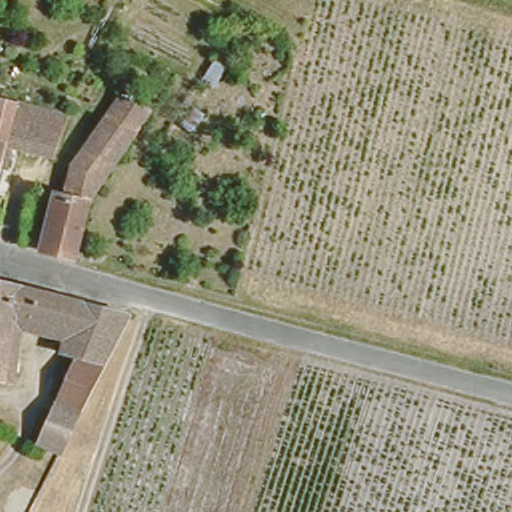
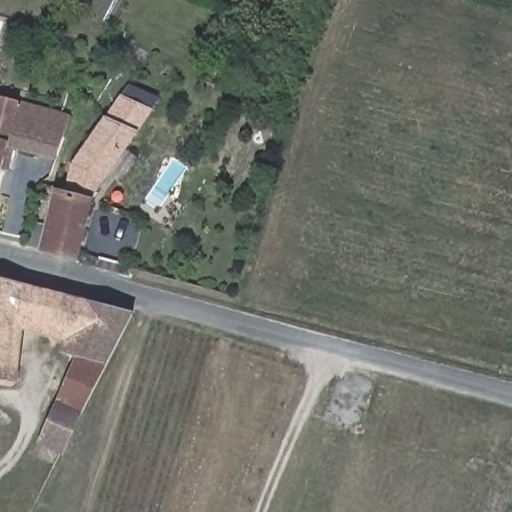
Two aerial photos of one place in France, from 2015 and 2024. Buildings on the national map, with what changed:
unchanged [(117,90),(149,104),(116,155),(84,141),(117,90)]
unchanged [(11,145),(6,167),(0,166),(0,96),(67,112),(53,155),(11,145)]
unchanged [(75,252),(41,245),(55,192),(62,193),(72,157),(84,141),(116,155),(90,193),(75,252)]
unchanged [(40,437),(78,355),(69,351),(72,339),(19,323),(14,375),(4,373),(0,373),(0,276),(131,308),(62,449),(40,437)]

